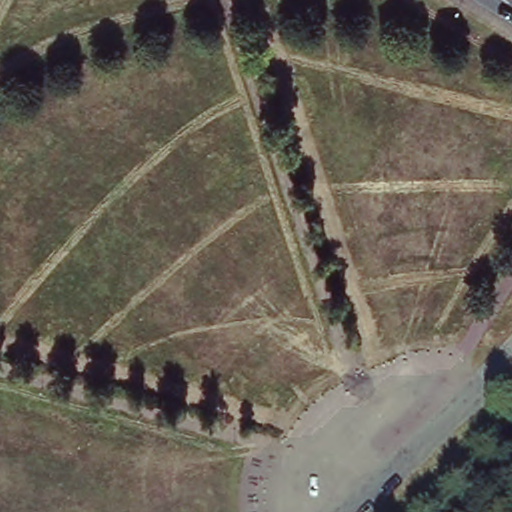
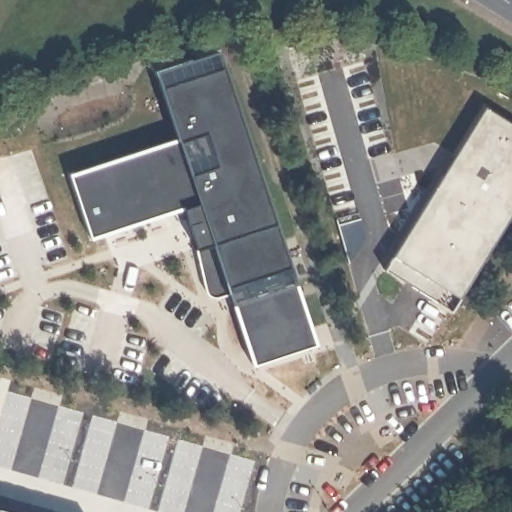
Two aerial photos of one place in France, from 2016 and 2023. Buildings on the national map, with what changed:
new [(312,343),(251,364),(229,290),(210,297),(179,203),(90,236),(68,177),(181,139),(155,69),(189,57),(197,77),(221,66),(312,343)]
new [(454,79),(451,110),(390,105),(393,73),(454,79)]
new [(488,97),(512,112),(512,212),(452,309),(384,267),(488,97)]

